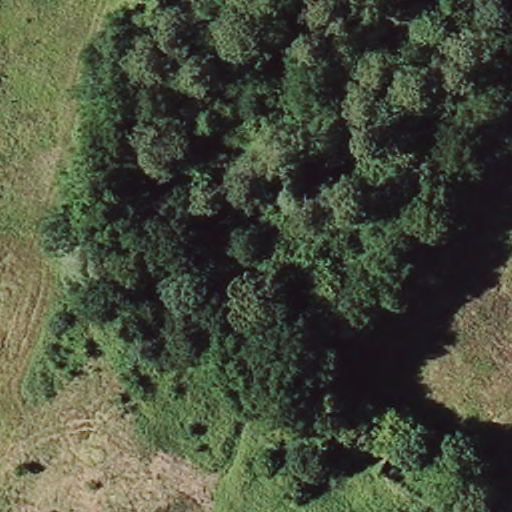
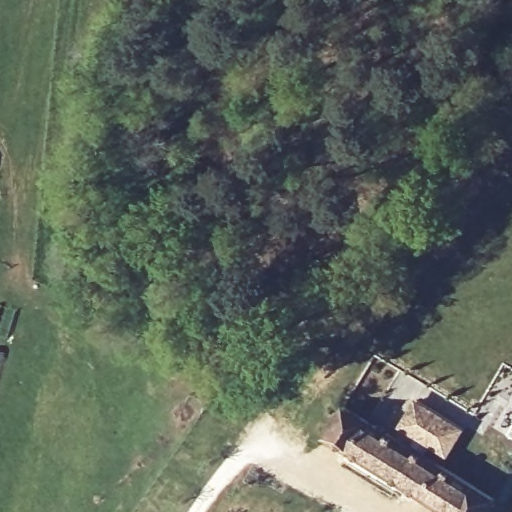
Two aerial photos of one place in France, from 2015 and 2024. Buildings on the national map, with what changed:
new [(449,456),(398,427),(415,399),(466,429),(449,456)]
new [(503,497),(494,512),(442,512),(321,439),(323,439),(347,401),(503,497)]
demolished [(396,438),(441,466),(425,496),(379,468),(396,438)]

